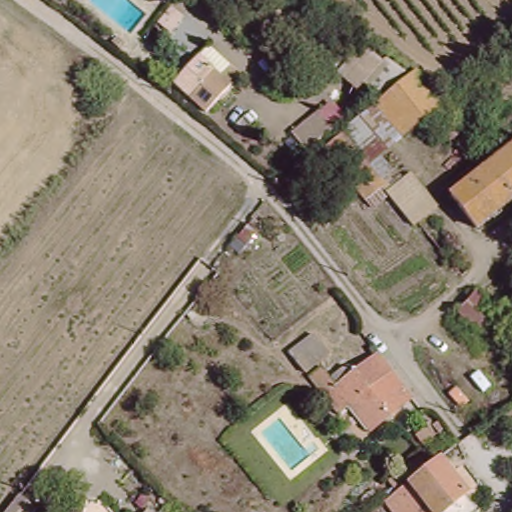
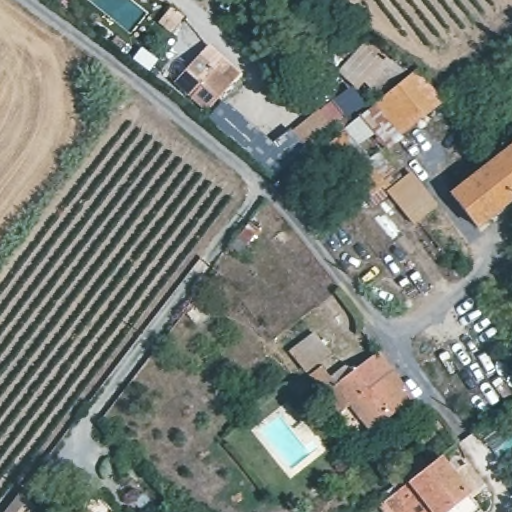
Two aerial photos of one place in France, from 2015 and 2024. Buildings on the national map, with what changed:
unchanged [(241,71),(212,111),(177,81),(212,42),(241,71)]
unchanged [(430,111),(381,151),(404,180),(412,174),(437,207),(420,221),(415,225),(385,186),(367,199),(328,148),(342,137),(342,135),(417,71),(425,80),(442,100),(430,111)]
unchanged [(430,111),(442,100),(483,149),(470,160),(430,111)]
unchanged [(335,126),(305,151),(290,133),(321,110),(335,126)]
unchanged [(512,204),(483,228),(457,195),(512,150),(512,204)]
unchanged [(249,222),(262,232),(242,257),(230,248),(249,222)]
unchanged [(512,285),(512,301),(479,332),(457,308),(500,271),(512,285)]
unchanged [(340,384),(356,370),(362,379),(388,358),(422,401),(380,435),(362,411),(352,419),(330,392),(340,384)]
unchanged [(444,472),(400,508),(392,498),(457,446),(465,456),(444,472)]
unchanged [(444,472),(473,510),(470,512),(395,512),(400,508),(444,472)]
unchanged [(38,505),(33,512),(13,512),(27,495),(38,505)]

